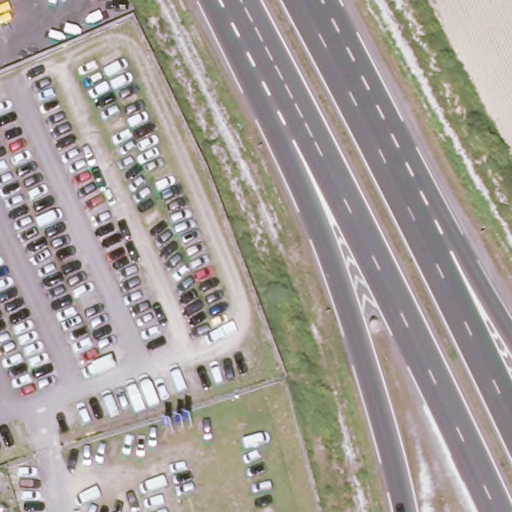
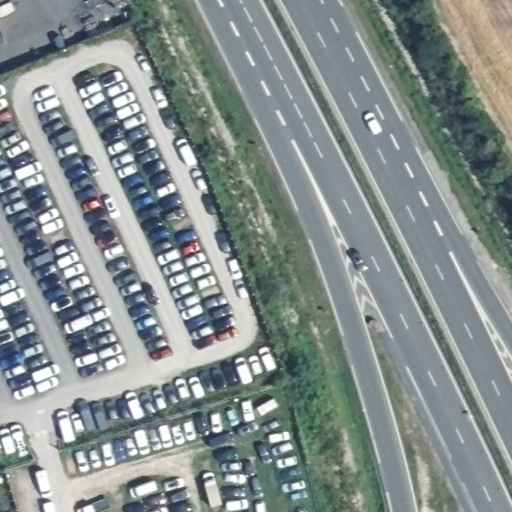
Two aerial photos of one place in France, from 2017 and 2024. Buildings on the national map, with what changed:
[]

